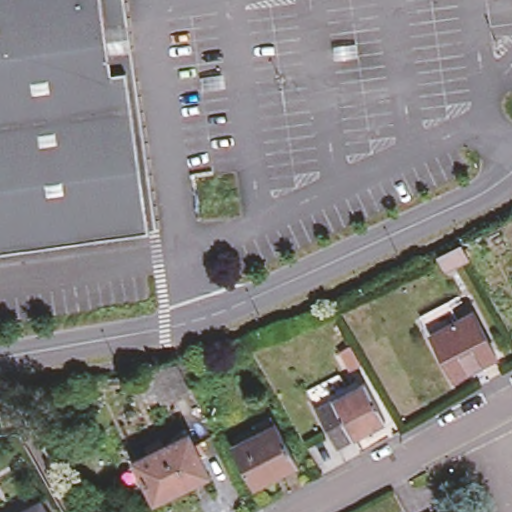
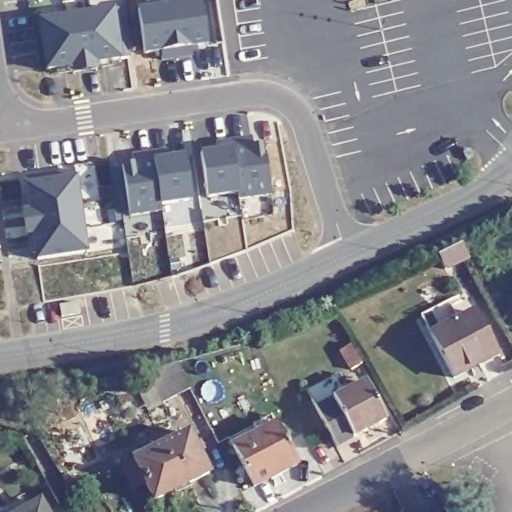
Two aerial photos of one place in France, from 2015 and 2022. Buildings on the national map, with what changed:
demolished [(120,72),(144,232),(0,254),(0,0),(109,0),(109,1),(120,72)]
new [(208,45),(145,54),(138,12),(201,2),(208,45)]
new [(129,58),(112,60),(112,69),(57,77),(55,69),(46,70),(39,21),(122,9),(129,58)]
new [(247,141),(247,150),(265,147),(272,197),(240,202),(239,196),(232,144),(247,141)]
new [(239,196),(207,200),(201,156),(217,154),(217,146),(232,144),(239,196)]
new [(168,153),(170,161),(186,159),(192,203),(162,207),(154,155),(168,153)]
new [(162,214),(130,218),(122,168),(140,166),(138,158),(154,155),(162,214)]
new [(26,181),(75,173),(80,206),(31,213),(30,210),(26,181)]
new [(30,210),(24,211),(22,199),(29,198),(30,210)]
new [(31,213),(80,206),(84,230),(35,238),(34,237),(31,213)]
new [(35,237),(27,238),(24,215),(31,214),(35,237)]
new [(84,230),(87,255),(38,262),(35,241),(35,238),(84,230)]
new [(30,254),(29,242),(35,241),(37,253),(30,254)]
unchanged [(462,246),(469,260),(447,273),(438,258),(462,246)]
unchanged [(497,357),(454,379),(427,324),(445,315),(450,325),(475,312),(497,357)]
unchanged [(357,365),(347,372),(335,354),(346,347),(357,365)]
unchanged [(177,364),(190,390),(164,404),(147,371),(177,364)]
unchanged [(307,398),(325,389),(343,380),(349,391),(362,383),(382,422),(350,438),(332,447),(307,398)]
unchanged [(293,461),(250,482),(230,441),(272,419),(293,461)]
unchanged [(205,469),(150,496),(130,455),(185,429),(205,469)]
unchanged [(35,497),(44,512),(11,512),(35,497)]
unchanged [(425,508),(427,512),(418,512),(425,508)]

